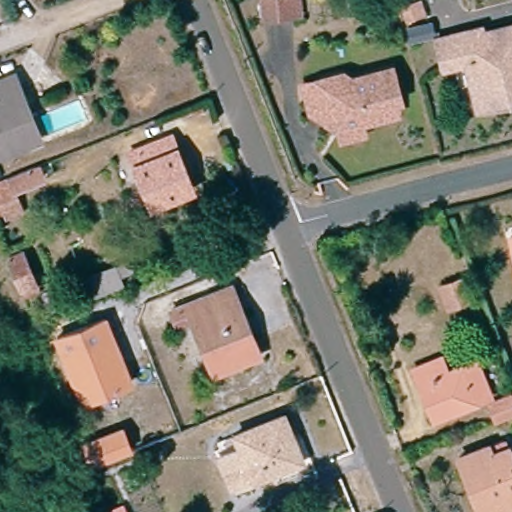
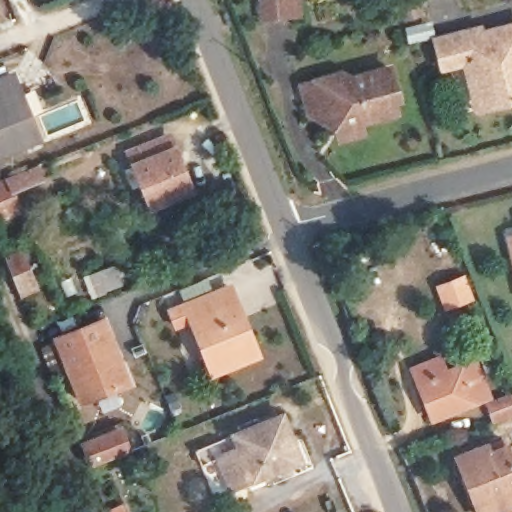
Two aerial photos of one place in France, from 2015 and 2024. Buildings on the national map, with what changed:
unchanged [(290,16),(263,19),(261,0),(289,0),(290,16)]
unchanged [(483,112),(473,115),(461,70),(440,74),(431,44),(464,36),(477,33),(479,41),(512,33),(512,104),(510,105),(483,112)]
unchanged [(19,91),(41,82),(46,99),(26,107),(36,131),(0,146),(0,73),(9,70),(19,91)]
unchanged [(336,135),(309,120),(307,116),(300,90),(317,84),(342,79),(350,83),(383,74),(398,117),(380,123),(361,129),(363,140),(338,147),(336,135)]
unchanged [(170,137),(191,191),(152,205),(132,152),(170,137)]
unchanged [(44,178),(13,190),(21,212),(6,218),(2,211),(0,211),(0,182),(38,166),(44,178)]
unchanged [(6,259),(20,254),(33,284),(25,288),(25,295),(20,297),(6,259)]
unchanged [(131,258),(136,271),(121,278),(125,287),(81,303),(72,279),(131,258)]
unchanged [(436,282),(459,273),(467,293),(443,302),(436,282)]
unchanged [(172,327),(166,308),(214,290),(227,286),(233,302),(253,354),(208,372),(188,322),(172,327)]
unchanged [(135,384),(78,406),(52,336),(106,314),(135,384)]
unchanged [(426,425),(410,376),(447,363),(450,372),(472,364),(486,401),(426,425)]
unchanged [(485,407),(508,399),(512,410),(512,417),(491,426),(485,407)]
unchanged [(302,464),(266,480),(261,471),(222,486),(209,455),(231,446),(226,433),(273,415),(282,432),(290,429),(302,464)]
unchanged [(133,451),(85,468),(76,441),(124,423),(133,451)]
unchanged [(503,512),(474,512),(454,462),(479,453),(482,461),(500,456),(512,485),(512,508),(503,512)]

